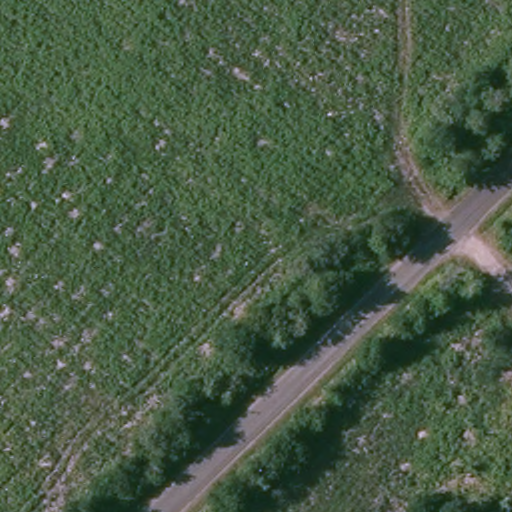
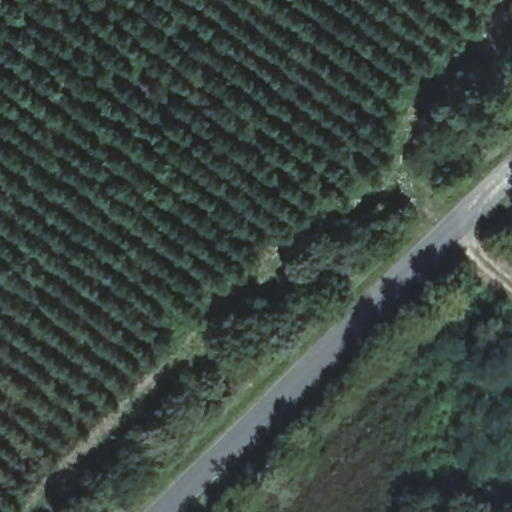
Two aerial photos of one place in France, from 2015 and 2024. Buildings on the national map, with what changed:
[]

